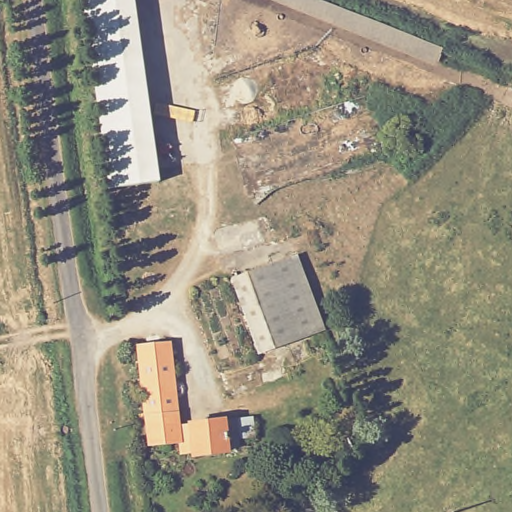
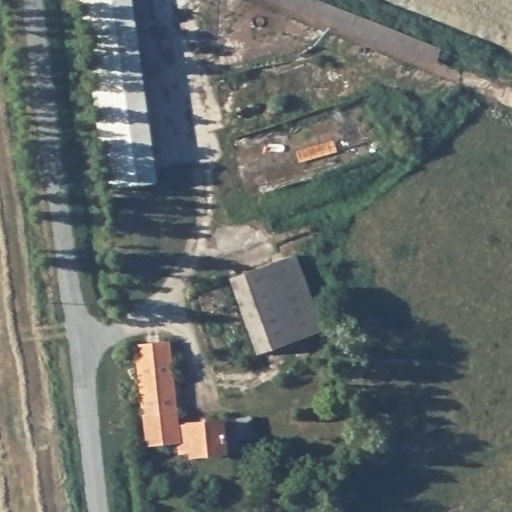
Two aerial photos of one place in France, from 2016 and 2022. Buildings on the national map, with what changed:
unchanged [(103,180),(78,0),(111,0),(136,174),(103,180)]
unchanged [(443,76),(260,0),(322,0),(452,54),(443,76)]
unchanged [(302,257),(332,331),(287,350),(259,274),(302,257)]
unchanged [(287,350),(289,356),(258,367),(227,285),(255,275),(259,274),(287,350)]
unchanged [(236,447),(237,454),(178,459),(177,448),(148,451),(143,414),(134,416),(132,398),(143,396),(138,351),(170,348),(181,427),(232,424),(250,423),(255,445),(236,447)]

